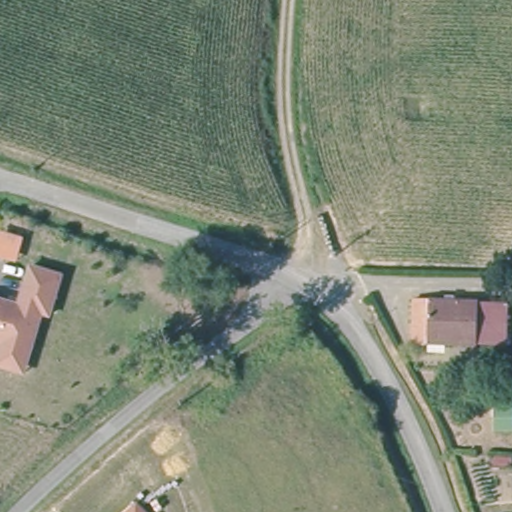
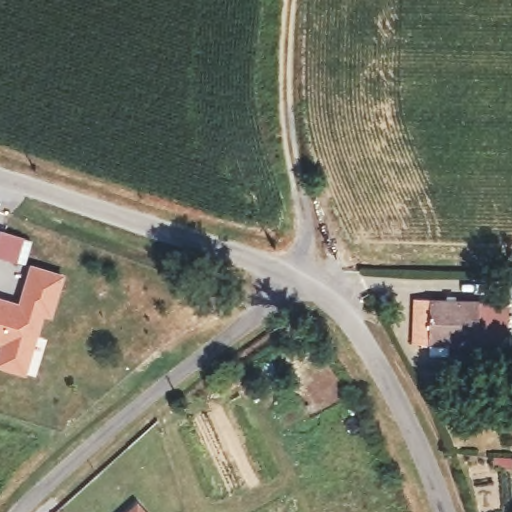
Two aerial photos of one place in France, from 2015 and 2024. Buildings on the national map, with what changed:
unchanged [(17,263),(0,258),(0,231),(24,238),(17,263)]
unchanged [(30,264),(63,272),(50,314),(42,312),(20,303),(30,264)]
unchanged [(0,357),(2,350),(3,343),(0,343),(0,297),(20,303),(42,312),(30,358),(26,370),(0,363),(0,357)]
unchanged [(512,302),(512,344),(418,342),(419,301),(512,302)]
unchanged [(136,503),(144,512),(126,512),(136,503)]

